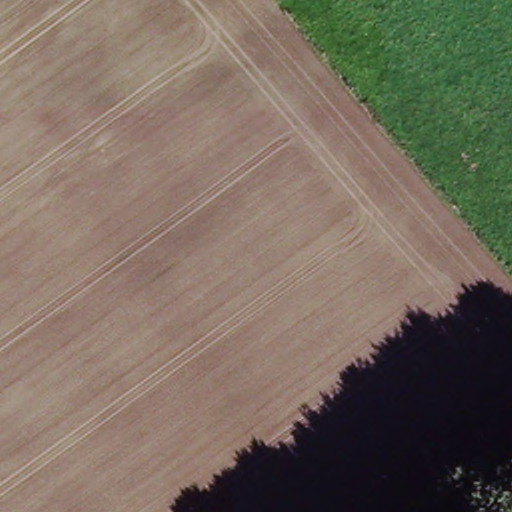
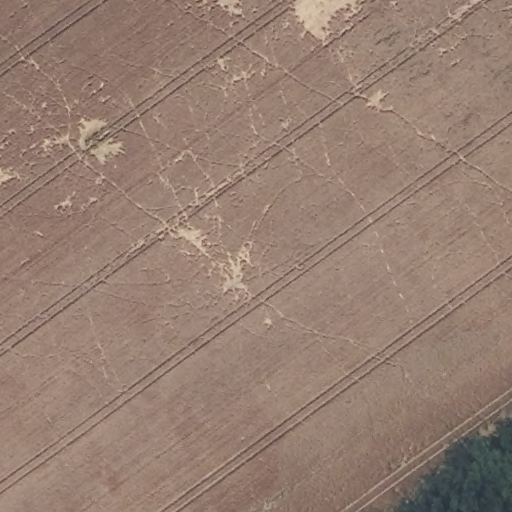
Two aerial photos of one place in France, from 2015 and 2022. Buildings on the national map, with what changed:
[]

